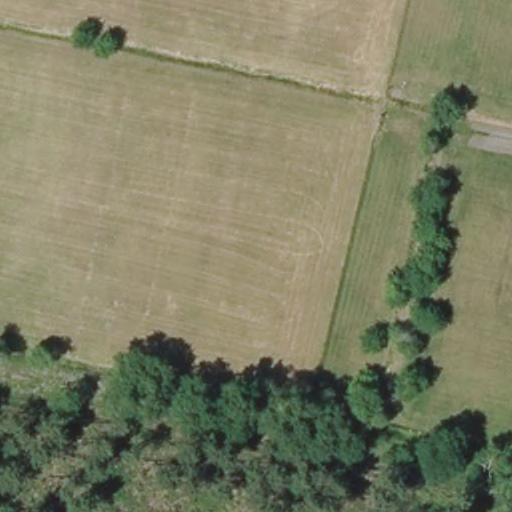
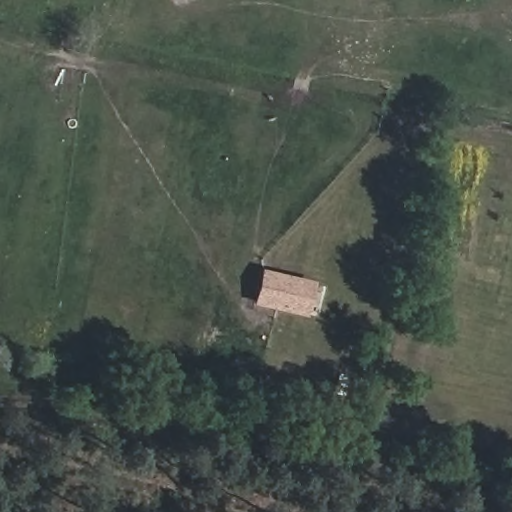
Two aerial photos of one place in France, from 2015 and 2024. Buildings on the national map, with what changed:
new [(306,316),(252,303),(261,268),(315,281),(306,316)]

